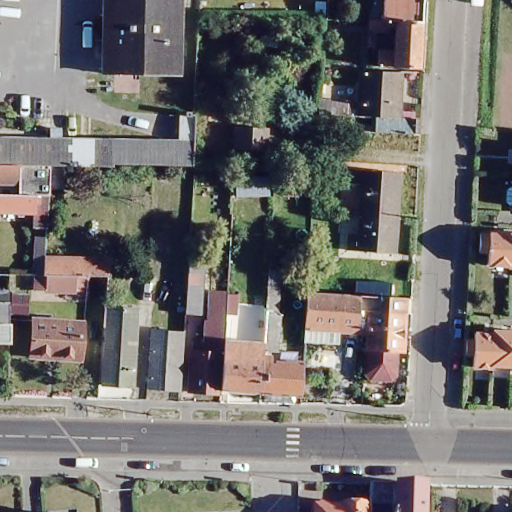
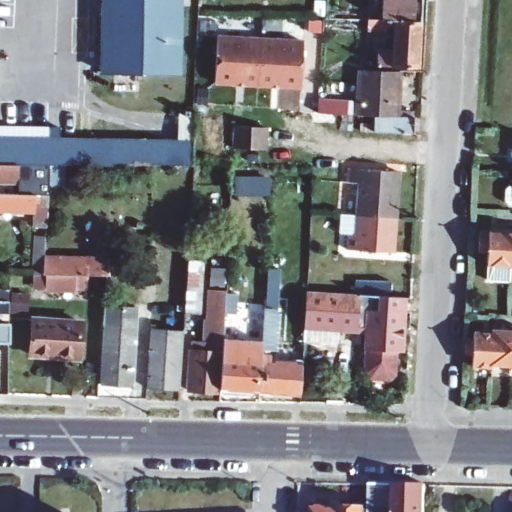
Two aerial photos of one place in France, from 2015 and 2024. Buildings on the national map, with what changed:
unchanged [(177,70),(100,68),(101,0),(177,0),(177,70)]
unchanged [(385,21),(387,0),(425,0),(423,21),(385,21)]
unchanged [(385,21),(423,21),(420,69),(379,66),(381,50),(397,51),(398,28),(390,27),(390,32),(378,31),(377,49),(372,48),(373,26),(373,21),(385,21)]
new [(220,81),(222,34),(308,38),(306,85),(220,81)]
unchanged [(378,134),(379,119),(368,119),(325,117),(323,117),(323,103),(368,105),(370,73),(405,73),(402,120),(405,120),(405,114),(417,114),(417,120),(418,120),(418,135),(378,134)]
unchanged [(15,191),(17,161),(7,161),(0,161),(0,133),(179,135),(180,108),(185,109),(185,104),(190,104),(190,108),(193,108),(193,117),(190,164),(152,163),(119,163),(69,162),(67,162),(60,162),(58,184),(47,184),(47,191),(45,224),(30,224),(31,207),(0,207),(0,190),(7,190),(15,191)]
unchanged [(270,123),(270,146),(237,145),(238,122),(270,123)]
unchanged [(372,127),(372,134),(367,134),(367,126),(372,127)]
unchanged [(7,166),(0,166),(0,161),(7,161),(7,166)]
unchanged [(360,180),(347,180),(347,166),(398,170),(395,214),(359,211),(357,211),(360,180)]
unchanged [(395,214),(393,250),(345,247),(347,231),(358,231),(359,211),(395,214)]
unchanged [(43,286),(45,272),(42,271),(31,271),(33,234),(44,234),(43,252),(107,253),(105,274),(82,273),(75,273),(74,288),(43,286)]
unchanged [(495,235),(495,234),(512,235),(512,266),(493,265),(493,253),(485,252),(485,234),(495,235)]
unchanged [(205,260),(203,312),(188,312),(191,260),(205,260)]
unchanged [(282,268),(279,311),(282,315),(280,351),(304,352),(304,364),(302,393),(266,391),(267,361),(265,361),(268,306),(270,267),(282,268)]
unchanged [(404,344),(397,343),(397,368),(394,373),(372,372),(367,367),(369,332),(305,327),(308,285),(357,289),(358,273),(394,276),(393,292),(405,293),(405,306),(404,344)]
unchanged [(0,342),(0,298),(0,287),(7,287),(7,298),(7,340),(7,342),(0,342)]
unchanged [(237,326),(236,350),(227,349),(227,353),(222,352),(221,392),(192,390),(195,349),(210,350),(210,321),(213,321),(215,293),(230,294),(228,325),(237,326)]
unchanged [(136,382),(105,381),(110,322),(110,323),(112,303),(125,304),(140,305),(136,382)]
unchanged [(226,359),(250,360),(254,305),(268,306),(265,361),(262,361),(260,390),(225,389),(226,359)]
unchanged [(86,321),(85,355),(33,352),(35,317),(86,321)]
unchanged [(475,335),(475,328),(494,329),(495,326),(512,328),(512,362),(493,360),(493,363),(473,362),(475,350),(467,350),(467,334),(475,335)]
unchanged [(184,331),(181,389),(151,388),(155,330),(184,331)]
unchanged [(426,485),(426,512),(369,512),(370,483),(402,484),(426,485)]
unchanged [(330,508),(339,508),(340,506),(365,507),(364,512),(313,512),(313,506),(330,506),(330,508)]

